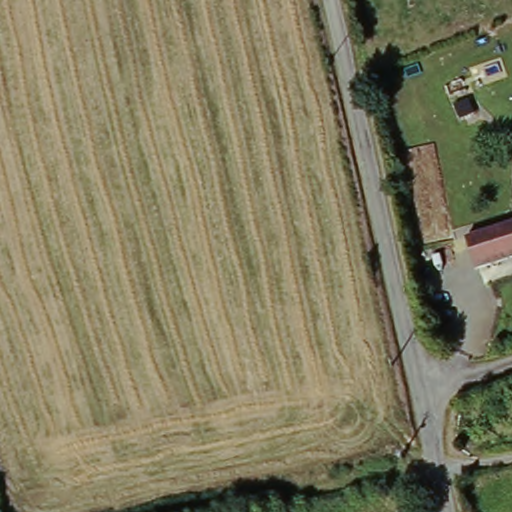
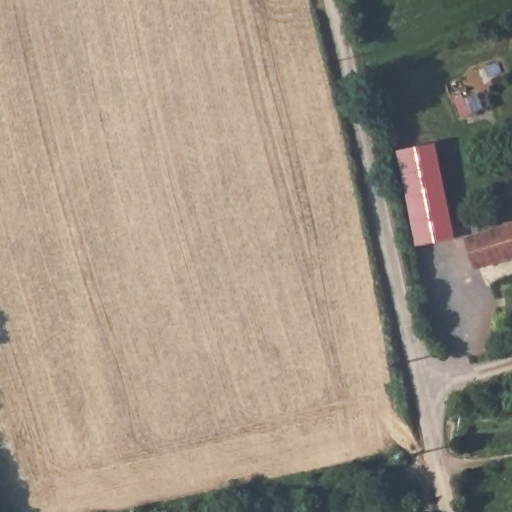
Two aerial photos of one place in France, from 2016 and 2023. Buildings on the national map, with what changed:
new [(417,245),(398,151),(438,142),(455,237),(417,245)]
unchanged [(475,236),(512,225),(512,257),(484,265),(475,236)]

